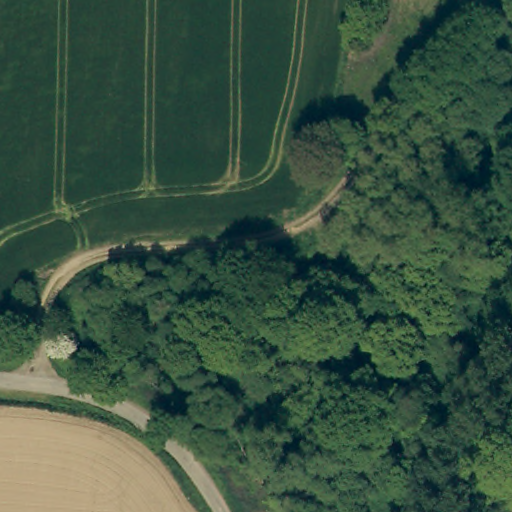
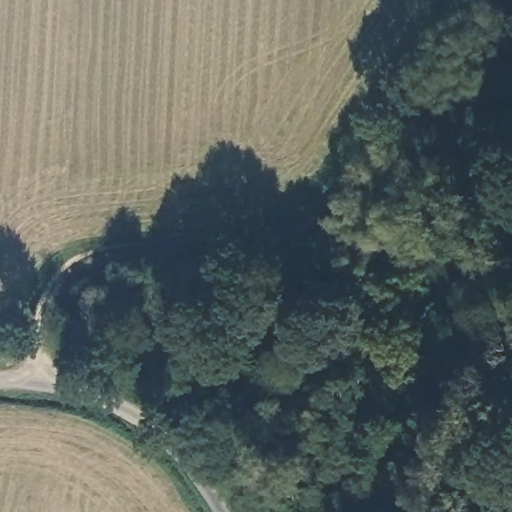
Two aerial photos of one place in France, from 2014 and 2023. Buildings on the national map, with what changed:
unchanged [(95,331),(71,329),(74,292),(99,295),(95,331)]

